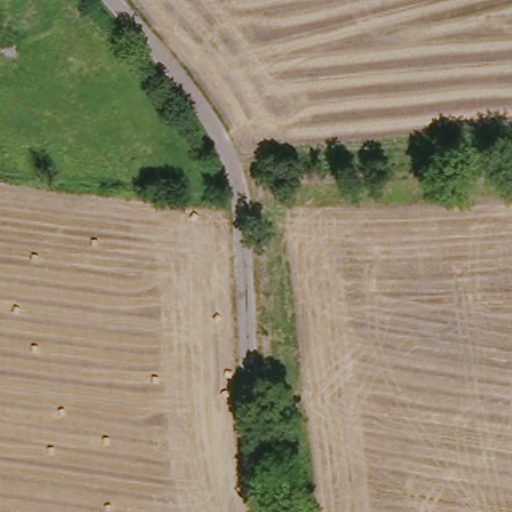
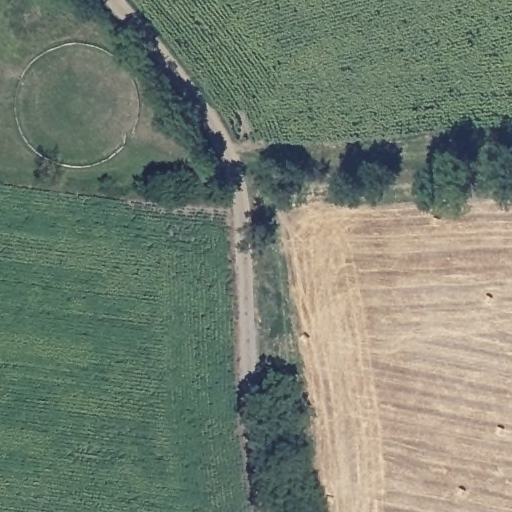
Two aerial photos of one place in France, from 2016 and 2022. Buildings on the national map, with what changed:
[]

